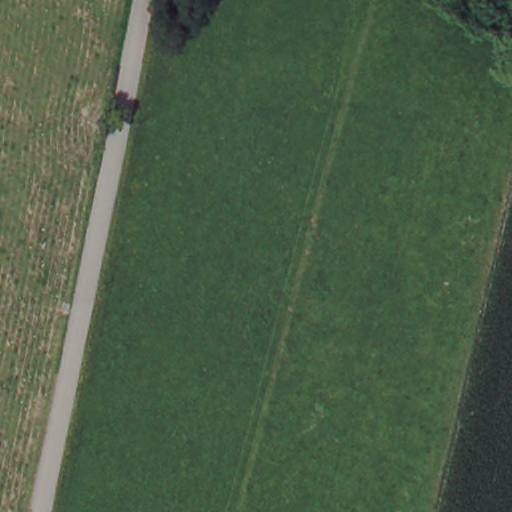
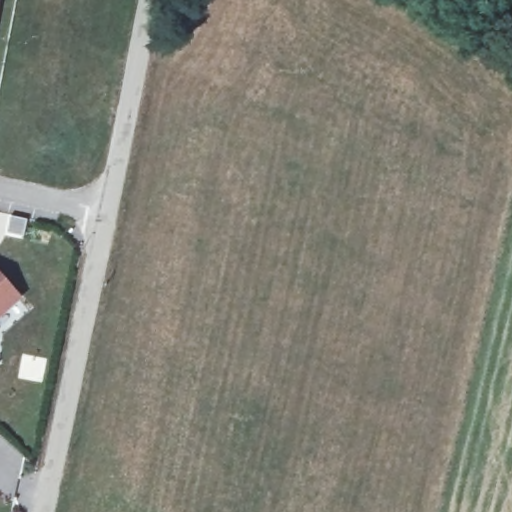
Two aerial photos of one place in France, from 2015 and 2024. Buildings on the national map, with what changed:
new [(0,275),(21,299),(0,316),(0,275)]

